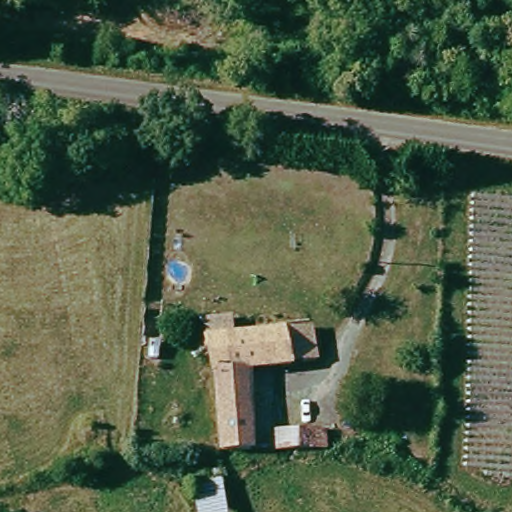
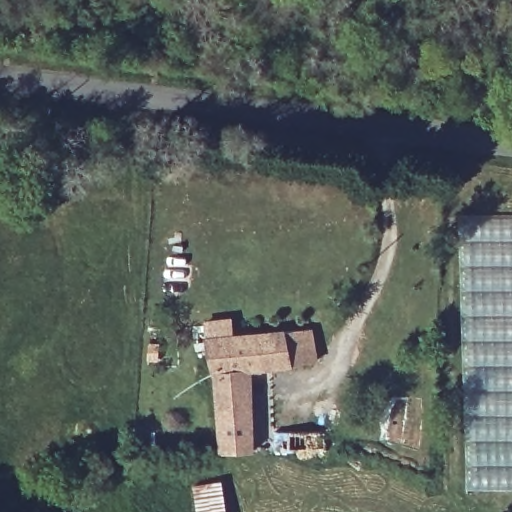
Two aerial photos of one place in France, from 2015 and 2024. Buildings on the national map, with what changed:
new [(512,490),(465,490),(459,289),(455,215),(512,216),(512,490)]
unchanged [(219,457),(213,350),(211,333),(237,329),(240,347),(303,339),(308,374),(246,380),(247,446),(239,447),(239,457),(219,457)]
unchanged [(324,437),(326,458),(273,457),(273,437),(324,437)]
unchanged [(226,475),(226,485),(220,486),(224,512),(197,512),(191,478),(226,475)]

